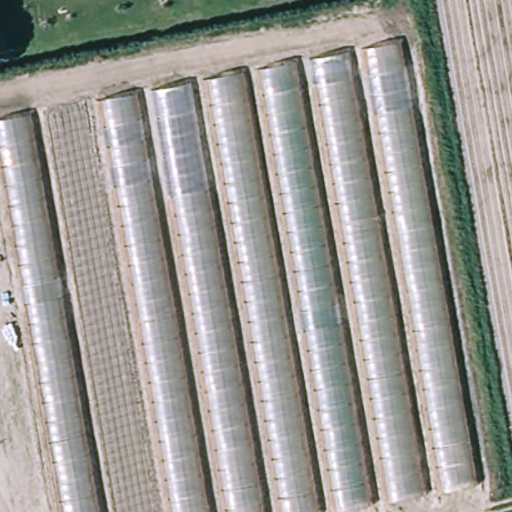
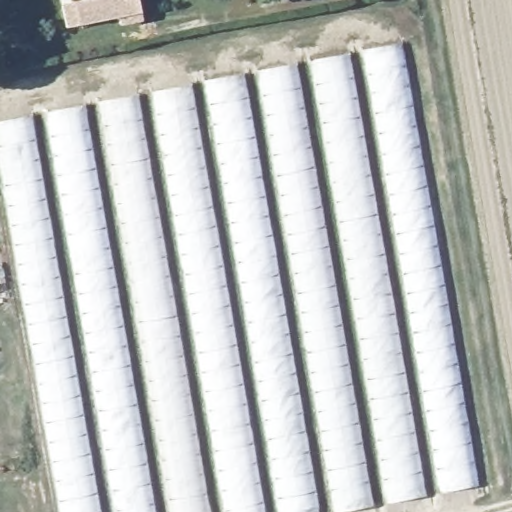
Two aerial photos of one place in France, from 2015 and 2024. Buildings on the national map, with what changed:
new [(73,2),(85,0),(138,0),(141,12),(143,21),(120,27),(116,16),(78,24),(66,27),(60,4),(73,2)]
unchanged [(335,512),(55,512),(0,199),(0,116),(402,40),(475,483),(335,512)]

